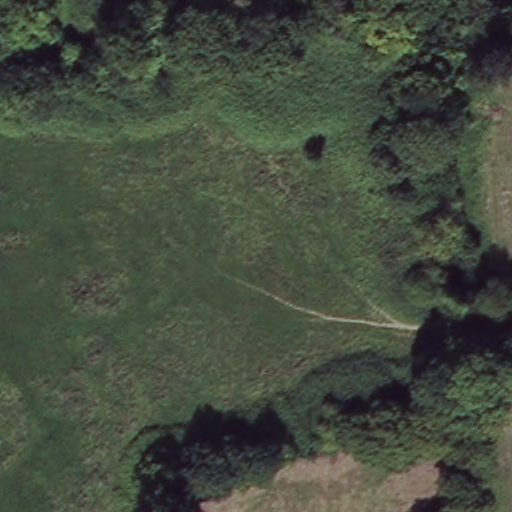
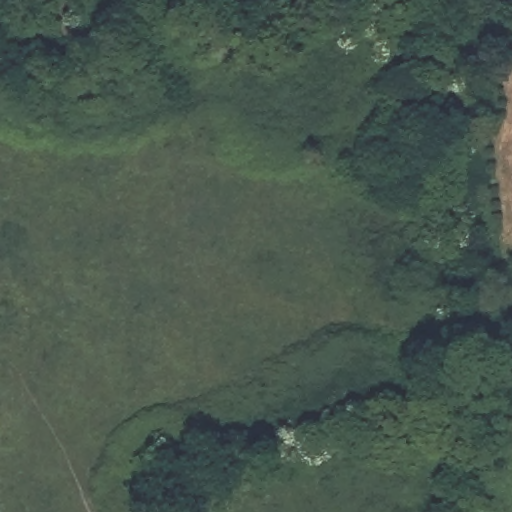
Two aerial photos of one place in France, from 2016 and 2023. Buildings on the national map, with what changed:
unchanged [(48,58),(0,72),(0,43),(40,31),(48,58)]

